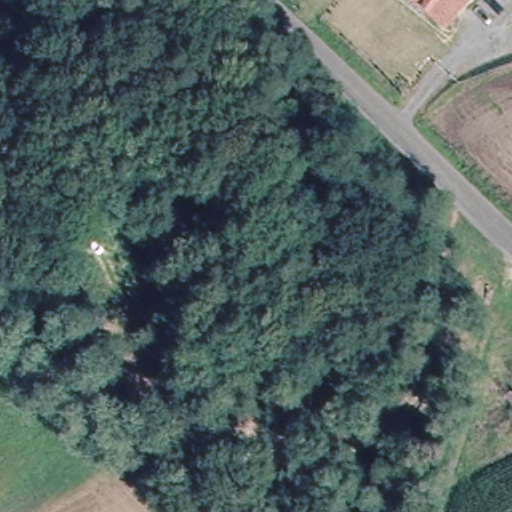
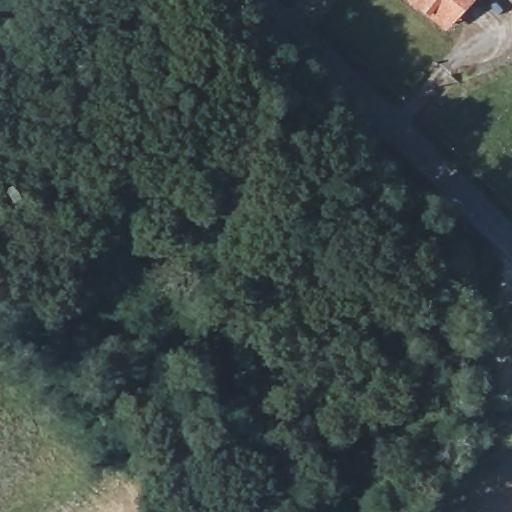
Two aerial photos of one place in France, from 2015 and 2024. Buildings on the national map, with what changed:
unchanged [(476,0),(447,30),(413,0),(476,0)]

